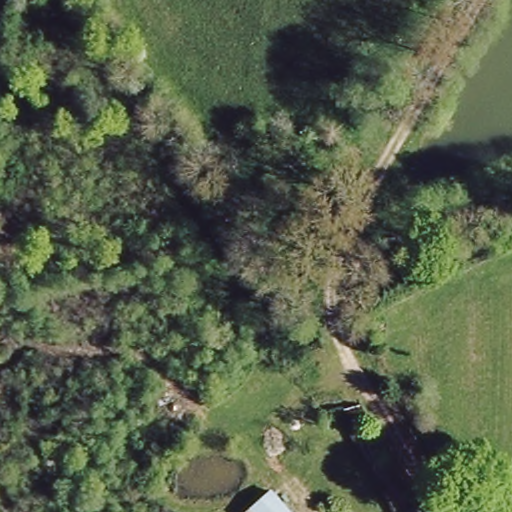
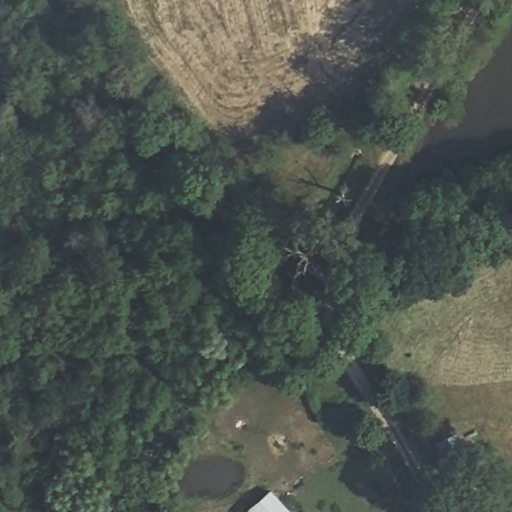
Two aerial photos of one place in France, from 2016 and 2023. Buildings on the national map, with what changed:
unchanged [(272,489),(292,512),(246,512),(272,489)]

